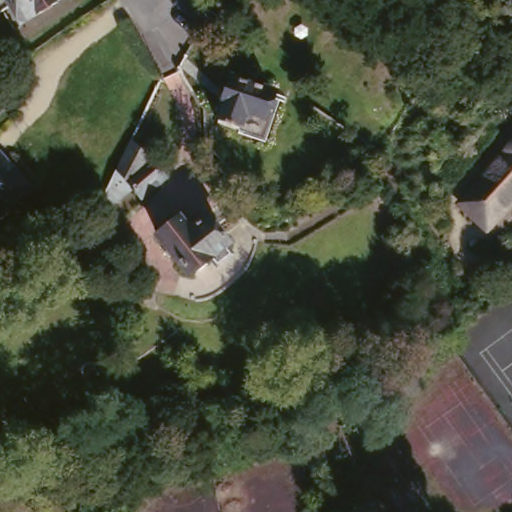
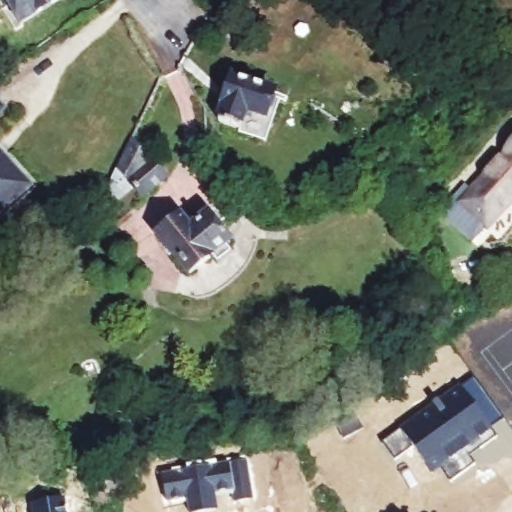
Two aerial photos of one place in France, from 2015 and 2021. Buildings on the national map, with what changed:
unchanged [(19,23),(5,0),(56,0),(19,23)]
unchanged [(229,102),(226,100),(235,75),(277,91),(267,117),(249,111),(242,126),(221,118),(229,102)]
unchanged [(0,123),(0,107),(7,117),(0,123)]
unchanged [(115,180),(132,143),(154,164),(169,181),(144,201),(135,191),(110,214),(102,209),(115,180)]
unchanged [(465,193),(512,143),(512,193),(489,217),(465,193)]
unchanged [(5,169),(7,167),(26,188),(0,211),(0,164),(5,169)]
unchanged [(172,222),(182,234),(201,218),(223,247),(182,278),(152,239),(172,222)]
new [(421,460),(410,445),(392,458),(379,440),(458,383),(459,385),(473,375),(502,416),(488,426),(495,435),(478,447),(473,440),(462,448),(473,462),(448,481),(437,466),(429,471),(421,460)]
new [(252,497),(232,500),(230,488),(212,491),(215,509),(195,512),(189,512),(186,496),(165,499),(160,473),(245,459),(252,497)]
new [(63,492),(66,512),(34,512),(31,497),(63,492)]

